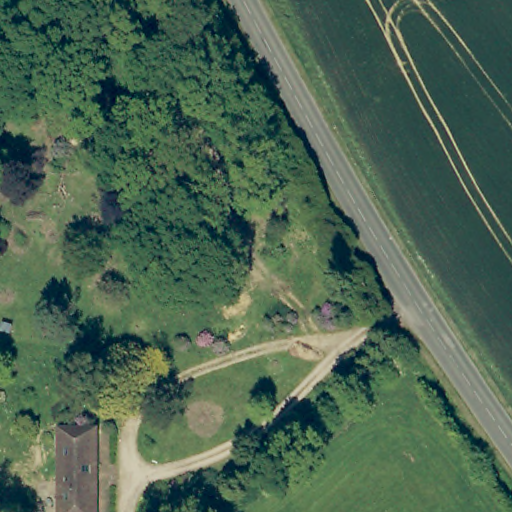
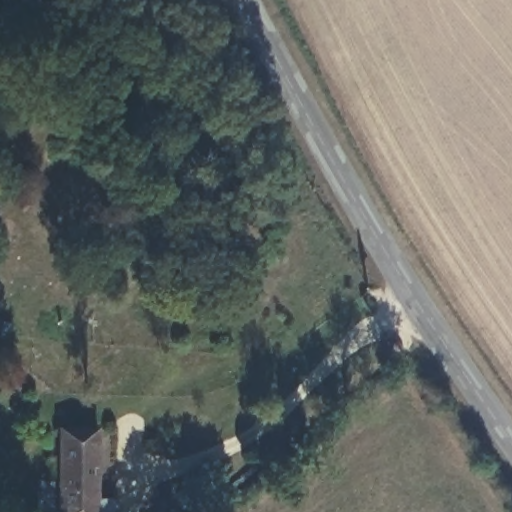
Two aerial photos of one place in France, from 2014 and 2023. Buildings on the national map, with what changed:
unchanged [(95,512),(58,512),(58,432),(95,432),(95,512)]

